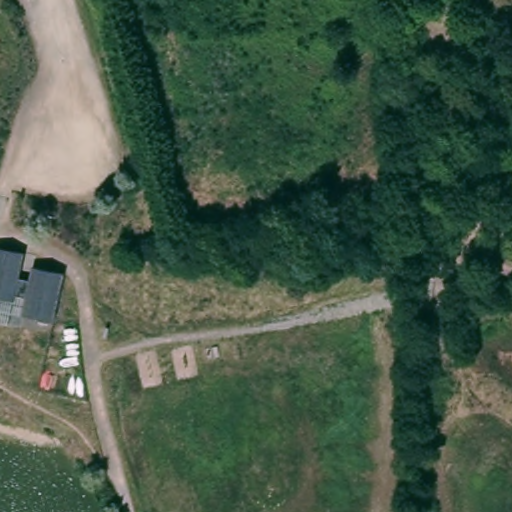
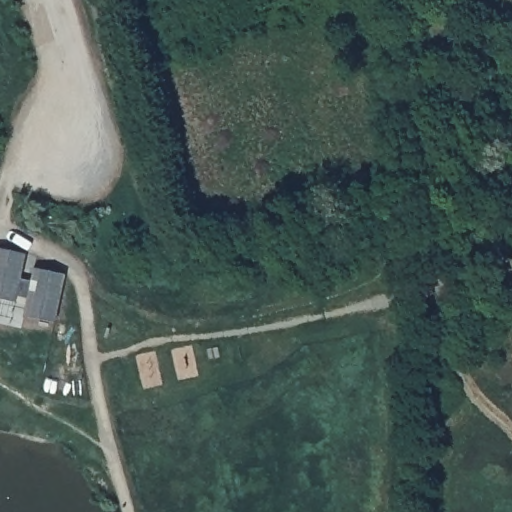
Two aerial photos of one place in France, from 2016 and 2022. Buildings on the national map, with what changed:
unchanged [(15,279),(26,281),(29,267),(60,274),(50,323),(18,316),(22,298),(11,296),(10,302),(0,301),(0,250),(20,254),(15,279)]

